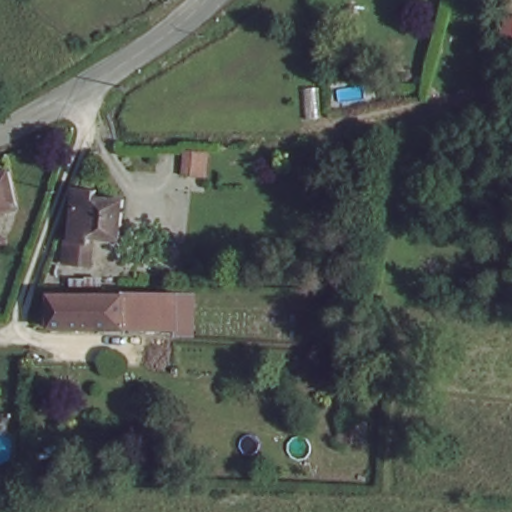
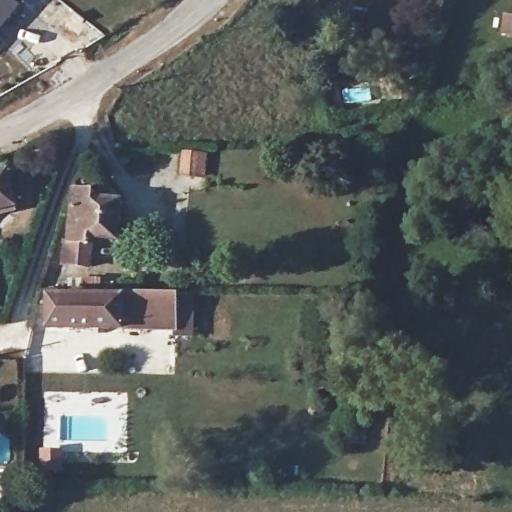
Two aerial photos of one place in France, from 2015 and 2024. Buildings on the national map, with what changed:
new [(0,0),(15,0),(23,6),(0,33),(0,0)]
unchanged [(15,202),(0,207),(0,173),(9,171),(15,202)]
unchanged [(73,185),(83,184),(93,184),(93,197),(121,197),(120,233),(95,233),(95,246),(91,246),(91,260),(65,260),(65,237),(72,237),(73,210),(73,185)]
unchanged [(178,293),(178,330),(128,330),(48,328),(48,293),(178,293)]

